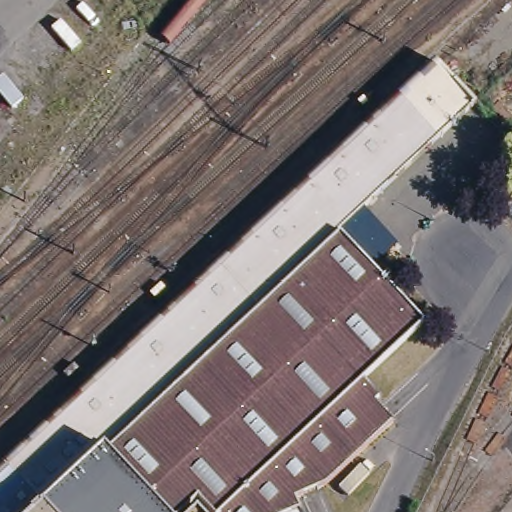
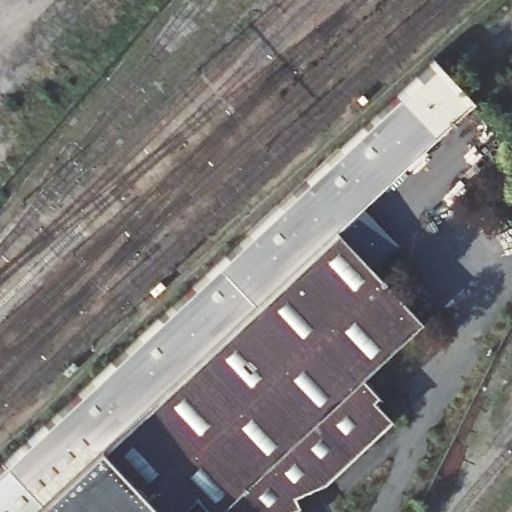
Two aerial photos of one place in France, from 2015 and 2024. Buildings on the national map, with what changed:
unchanged [(51,512),(0,512),(0,475),(439,61),(480,106),(344,236),(111,456),(51,512)]
unchanged [(344,236),(428,325),(369,381),(386,399),(381,404),(400,423),(332,486),(302,500),(307,510),(302,512),(213,512),(203,502),(192,512),(165,512),(111,456),(344,236)]
unchanged [(111,456),(165,512),(51,512),(111,456)]
unchanged [(205,509),(208,512),(202,512),(205,509)]

